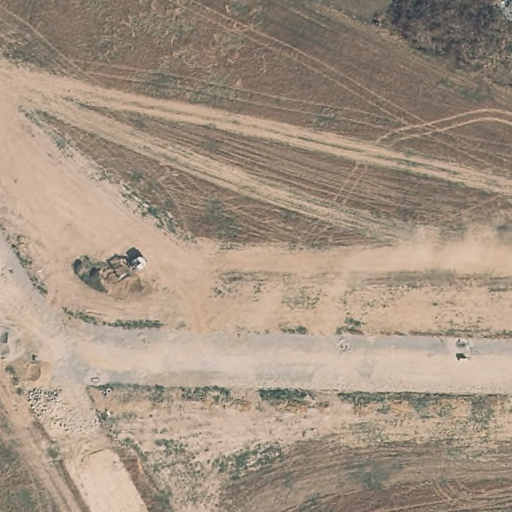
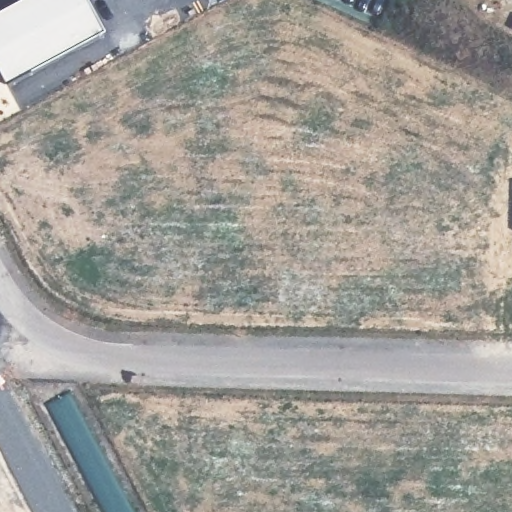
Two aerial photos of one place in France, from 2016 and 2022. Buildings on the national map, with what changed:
new [(18,0),(87,0),(104,31),(5,84),(0,76),(0,10),(18,0)]

